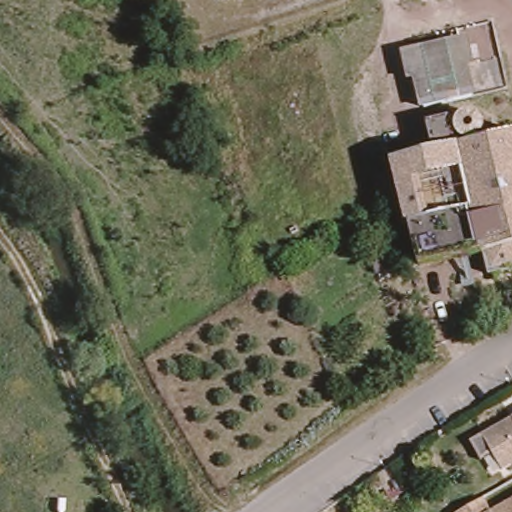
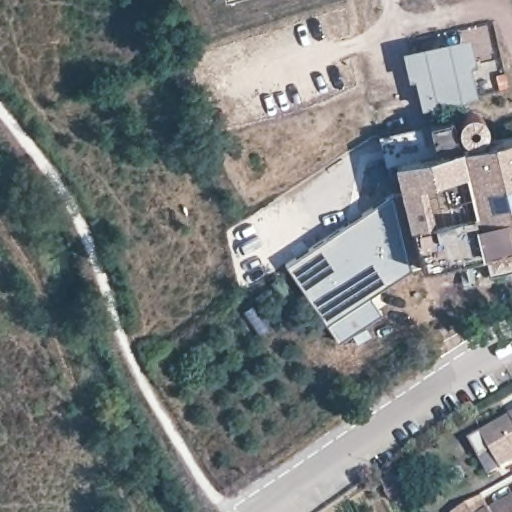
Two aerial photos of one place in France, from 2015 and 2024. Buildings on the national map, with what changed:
unchanged [(219,1),(219,0),(224,0),(219,1)]
unchanged [(456,61),(463,91),(414,102),(403,54),(451,43),(456,61)]
unchanged [(470,283),(464,261),(420,271),(395,167),(434,158),(427,127),(450,121),(458,152),(512,139),(512,273),(488,278),(470,283)]
new [(338,340),(287,265),(390,193),(400,190),(418,265),(408,268),(369,295),(381,312),(338,340)]
unchanged [(482,435),(512,418),(512,463),(502,469),(482,435)]
unchanged [(488,493),(496,506),(512,497),(512,512),(459,512),(458,510),(488,493)]

